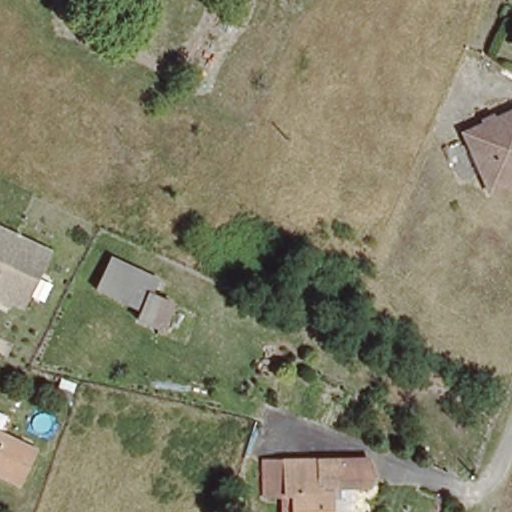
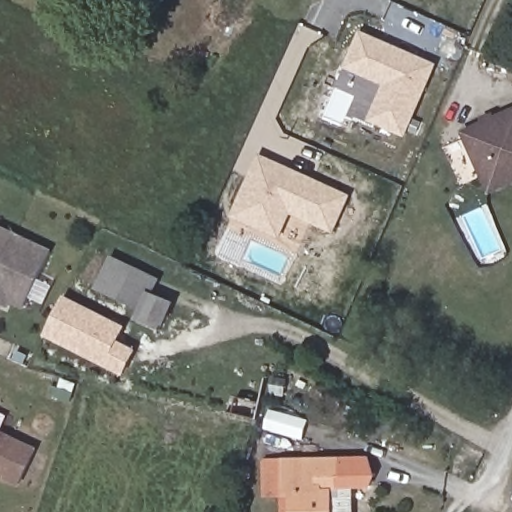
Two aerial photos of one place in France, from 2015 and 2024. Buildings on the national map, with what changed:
new [(361,30),(438,64),(406,138),(367,122),(383,85),(345,69),(361,30)]
unchanged [(485,190),(460,131),(512,110),(512,178),(485,190)]
new [(335,234),(291,214),(280,237),(233,217),(260,153),(351,195),(335,234)]
unchanged [(15,304),(3,298),(0,303),(0,230),(42,251),(15,304)]
unchanged [(160,277),(154,287),(177,299),(162,328),(139,316),(143,308),(98,285),(115,253),(160,277)]
new [(120,342),(137,350),(124,377),(45,337),(65,295),(126,327),(120,342)]
unchanged [(0,431),(4,432),(38,449),(21,486),(0,475),(0,431)]
unchanged [(287,494),(288,460),(294,460),(377,457),(379,484),(338,487),(329,499),(329,512),(294,512),(294,495),(287,494)]

